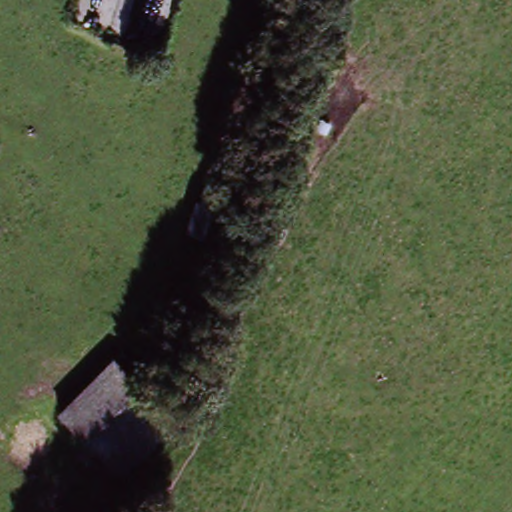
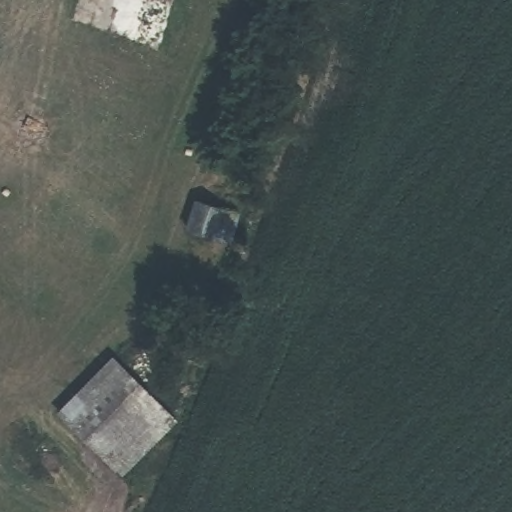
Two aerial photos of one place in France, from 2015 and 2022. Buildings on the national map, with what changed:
unchanged [(202,229),(210,204),(237,213),(228,237),(202,229)]
unchanged [(125,477),(57,416),(112,357),(177,421),(125,477)]

